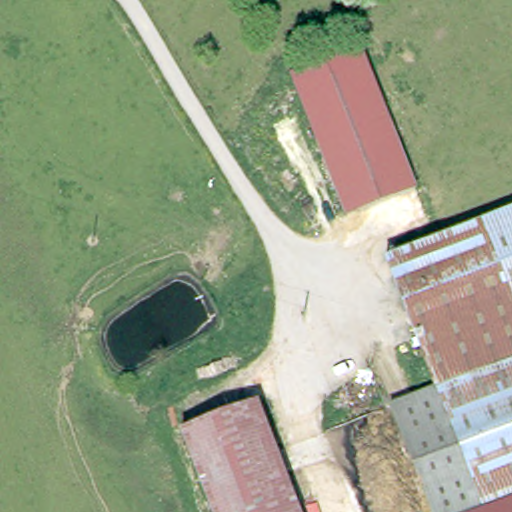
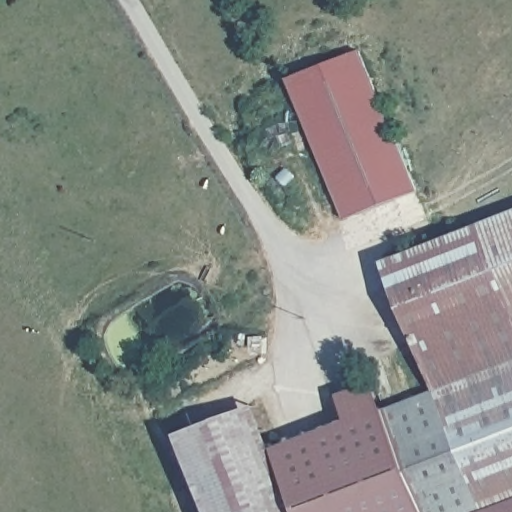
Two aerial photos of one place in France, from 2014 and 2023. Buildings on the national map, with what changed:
unchanged [(287,80),(360,53),(413,195),(341,220),(287,80)]
unchanged [(438,391),(387,261),(512,212),(512,362),(438,391)]
unchanged [(487,512),(486,512),(438,391),(512,362),(512,502),(487,512)]
new [(432,512),(299,512),(275,450),(348,422),(339,397),(373,384),(383,412),(392,409),(432,512)]
unchanged [(486,512),(432,512),(392,409),(438,391),(486,512)]
unchanged [(299,512),(213,512),(183,437),(258,408),(299,512)]
new [(512,502),(512,512),(487,512),(512,502)]

